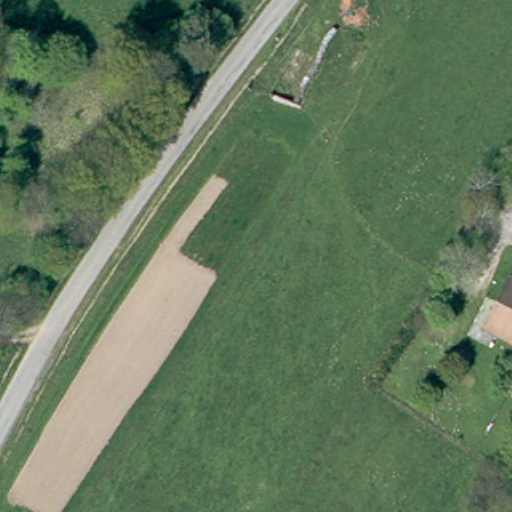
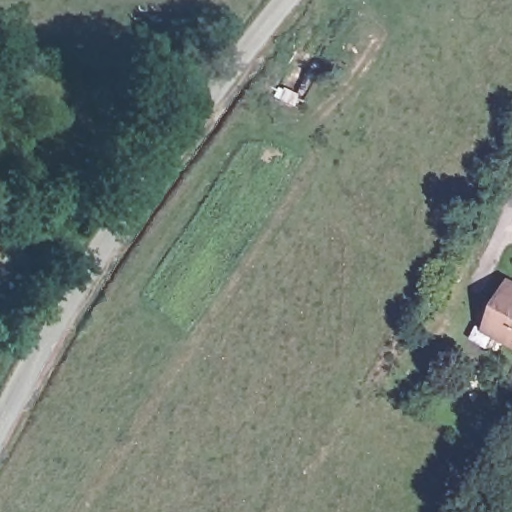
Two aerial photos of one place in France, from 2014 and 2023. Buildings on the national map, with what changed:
unchanged [(512,278),(512,339),(484,326),(509,277),(512,278)]

